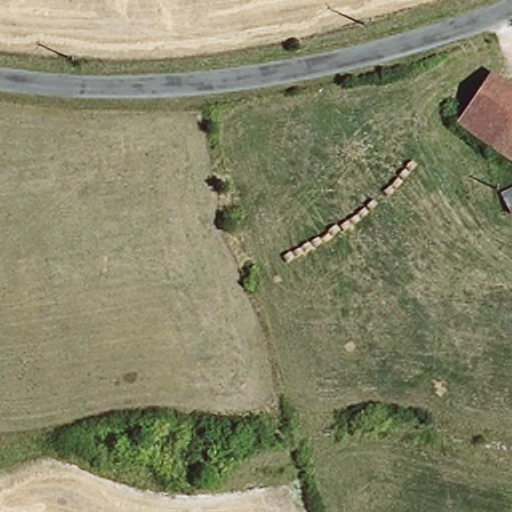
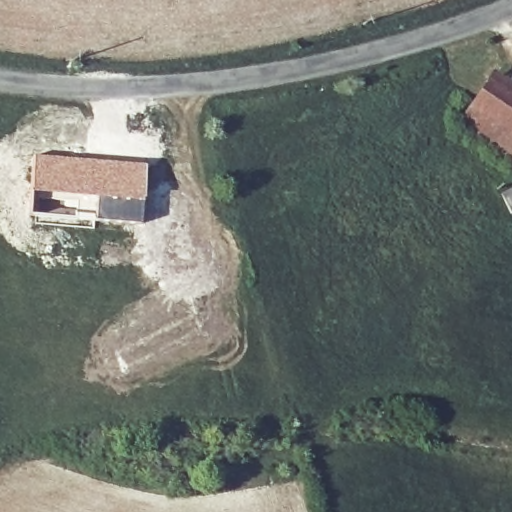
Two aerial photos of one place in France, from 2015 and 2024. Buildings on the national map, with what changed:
unchanged [(484,72),(512,88),(512,102),(486,147),(452,127),(484,72)]
unchanged [(512,102),(512,162),(486,147),(512,102)]
new [(34,154),(146,165),(140,225),(93,221),(95,200),(30,193),(34,154)]
unchanged [(512,208),(503,210),(499,192),(512,189),(512,208)]

